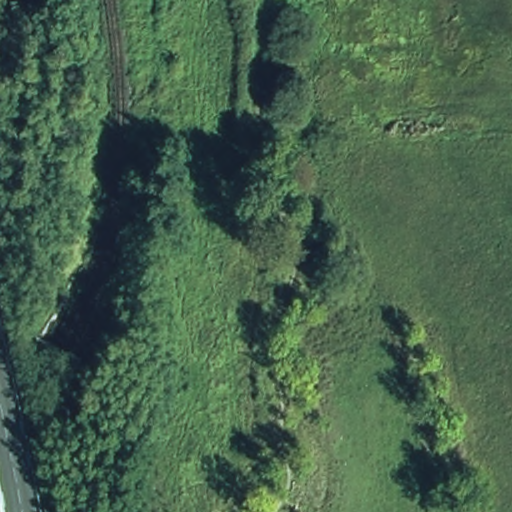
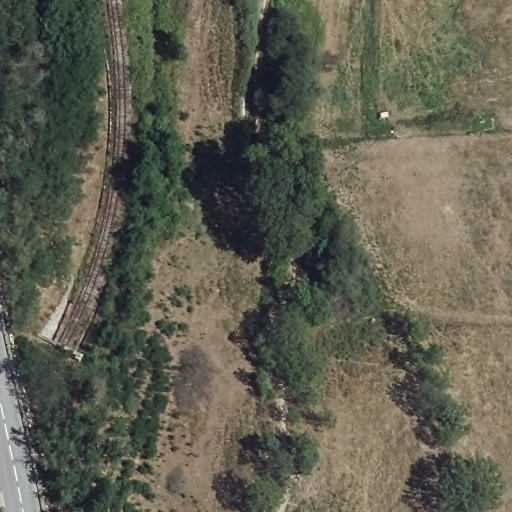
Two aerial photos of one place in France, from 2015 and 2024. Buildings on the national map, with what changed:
[]

